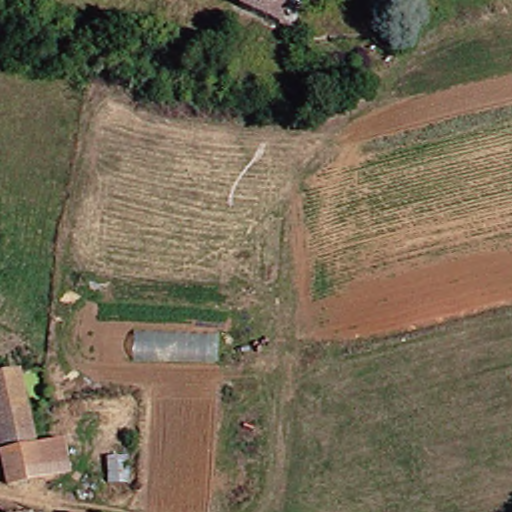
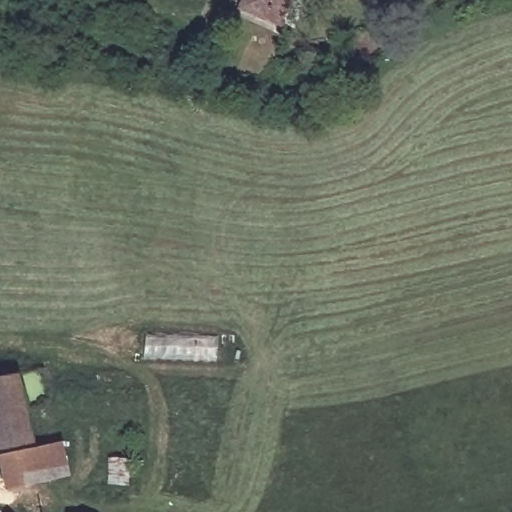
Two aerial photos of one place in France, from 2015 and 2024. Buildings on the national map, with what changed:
unchanged [(271,29),(226,8),(229,0),(285,0),(271,29)]
unchanged [(20,374),(28,452),(0,457),(0,376),(20,374)]
unchanged [(55,450),(59,480),(0,486),(0,457),(28,452),(55,450)]

